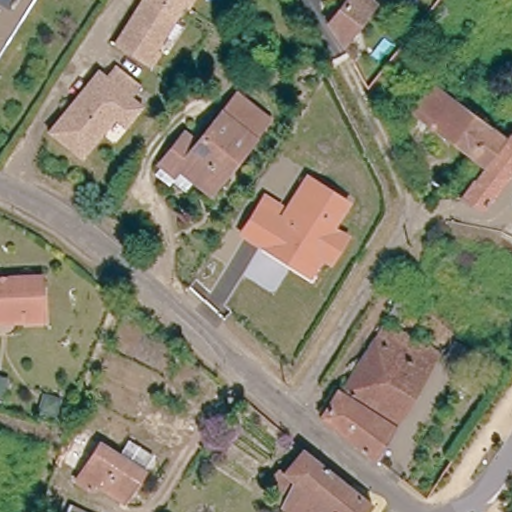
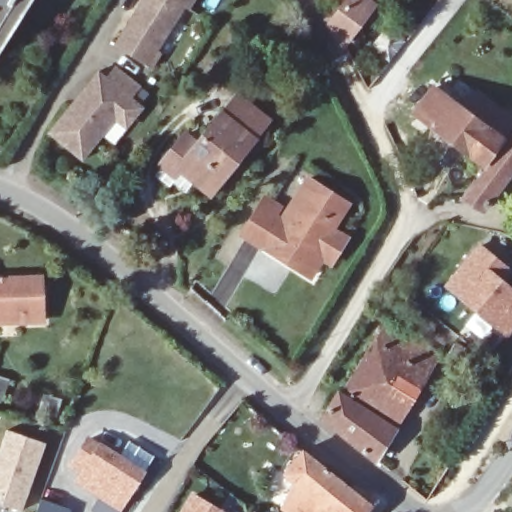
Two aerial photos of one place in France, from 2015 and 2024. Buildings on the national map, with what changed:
unchanged [(0,38),(0,0),(25,0),(0,38)]
unchanged [(142,0),(195,0),(189,10),(185,7),(157,51),(161,54),(151,69),(114,46),(142,0)]
unchanged [(348,39),(333,18),(347,0),(378,0),(348,39)]
unchanged [(115,120),(81,161),(48,132),(98,71),(106,77),(115,67),(140,87),(131,98),(143,107),(131,121),(125,129),(115,120)]
unchanged [(320,74),(311,89),(303,83),(312,69),(320,74)]
unchanged [(483,164),(413,112),(433,87),(501,139),(483,164)]
unchanged [(205,194),(189,181),(180,192),(168,182),(164,187),(149,174),(180,135),(193,145),(217,115),(236,130),(237,130),(217,114),(233,94),(252,110),(264,119),(205,194)]
unchanged [(460,197),(472,182),(473,183),(484,167),(512,132),(512,172),(504,182),(483,210),(460,197)]
unchanged [(315,255),(304,274),(289,265),(287,257),(278,252),(274,256),(236,232),(259,196),(274,206),(269,215),(274,218),(301,176),(340,201),(325,226),(340,235),(324,261),(315,255)]
new [(512,270),(512,274),(507,281),(512,285),(512,332),(507,338),(442,286),(479,242),(512,270)]
unchanged [(41,316),(0,317),(0,274),(39,272),(41,316)]
unchanged [(417,317),(407,312),(400,323),(391,318),(401,300),(421,311),(417,317)]
unchanged [(343,395),(385,329),(438,362),(396,428),(343,395)]
unchanged [(473,360),(464,375),(447,364),(456,350),(473,360)]
unchanged [(3,387),(0,386),(0,376),(6,377),(3,387)]
unchanged [(324,423),(339,400),(393,434),(383,451),(374,465),(324,423)]
new [(22,510),(1,502),(6,490),(0,488),(0,443),(5,427),(46,443),(22,510)]
unchanged [(122,453),(132,438),(156,454),(125,502),(95,482),(93,487),(80,479),(85,472),(65,458),(84,430),(122,453)]
unchanged [(286,512),(281,508),(283,505),(278,502),(282,496),(286,497),(268,483),(275,475),(279,470),(284,474),(303,451),(372,507),(368,512),(286,512)]
new [(228,512),(179,512),(191,491),(228,512)]
unchanged [(77,512),(35,512),(43,497),(77,512)]

